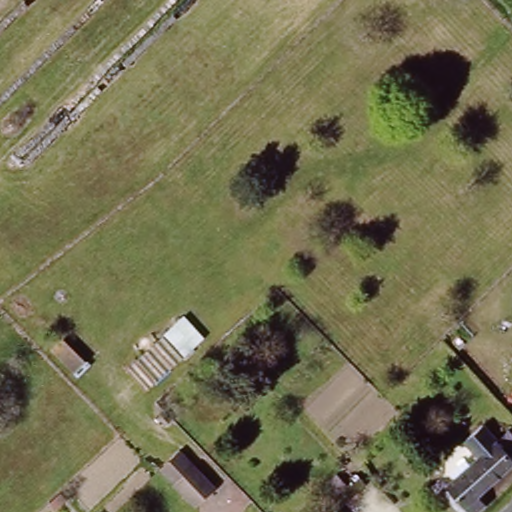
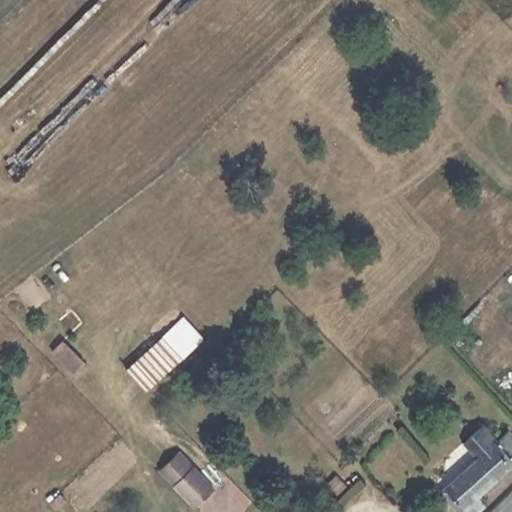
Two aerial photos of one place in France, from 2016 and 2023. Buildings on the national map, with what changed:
unchanged [(156,380),(136,357),(186,310),(208,334),(156,380)]
unchanged [(453,485),(508,428),(512,432),(512,460),(482,491),(490,498),(479,510),(477,512),(469,512),(447,491),(453,485)]
unchanged [(179,448),(215,486),(196,505),(159,468),(179,448)]

